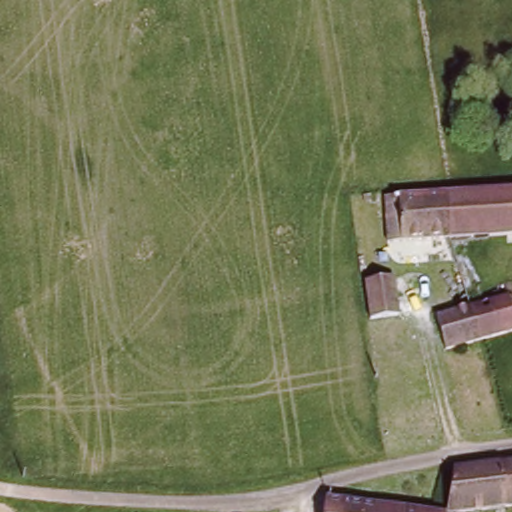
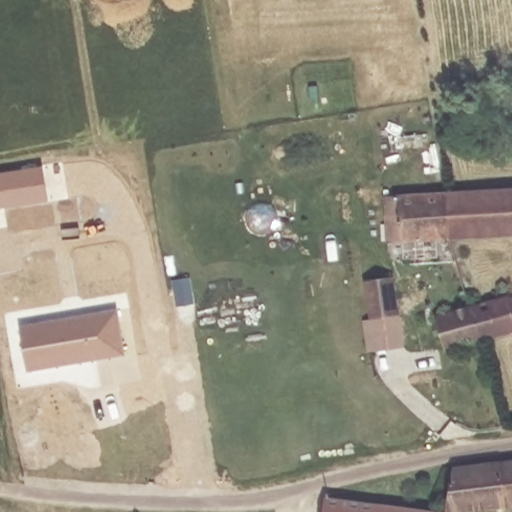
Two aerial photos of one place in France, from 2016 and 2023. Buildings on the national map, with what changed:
new [(47,169),(52,201),(0,209),(0,177),(47,169)]
unchanged [(512,184),(512,233),(447,237),(441,237),(438,189),(512,184)]
unchanged [(380,224),(379,192),(438,189),(441,237),(396,239),(381,239),(380,224)]
unchanged [(392,279),(398,314),(374,318),(368,282),(392,279)]
unchanged [(510,291),(512,299),(512,330),(478,339),(469,303),(510,291)]
unchanged [(478,339),(445,349),(435,312),(469,303),(478,339)]
new [(121,312),(129,358),(31,374),(23,328),(121,312)]
unchanged [(461,512),(460,512),(450,512),(457,466),(512,459),(512,504),(461,512)]
unchanged [(332,495),(437,512),(329,512),(332,495)]

